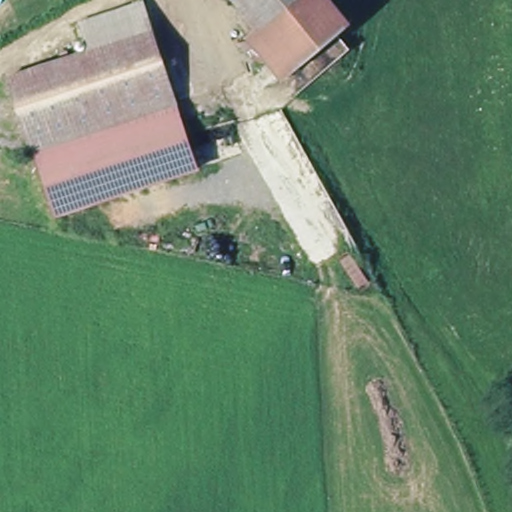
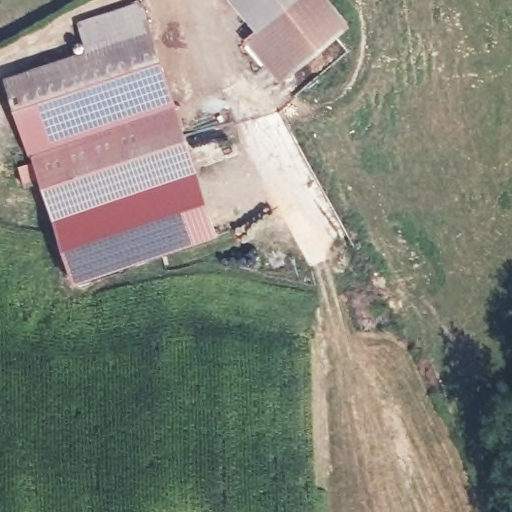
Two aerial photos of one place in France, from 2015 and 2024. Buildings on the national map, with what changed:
unchanged [(134,0),(145,26),(137,25),(88,47),(77,22),(134,0)]
unchanged [(242,1),(240,0),(291,0),(265,25),(242,1)]
unchanged [(291,0),(350,0),(359,9),(293,76),(254,35),(265,25),(291,0)]
unchanged [(3,85),(88,47),(137,25),(145,26),(176,95),(35,156),(3,85)]
unchanged [(62,219),(35,156),(176,95),(203,157),(62,219)]
new [(62,219),(203,157),(223,231),(77,281),(35,156),(62,219)]

